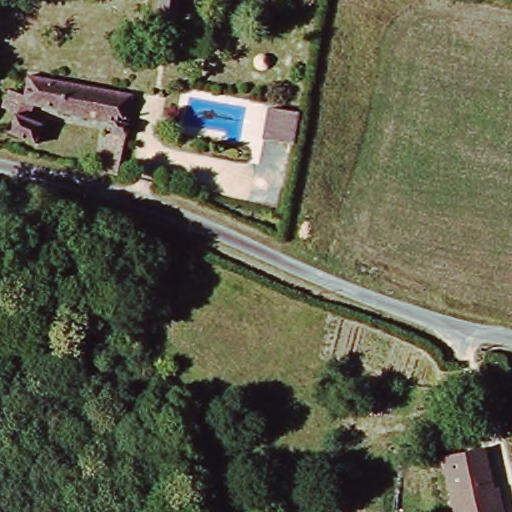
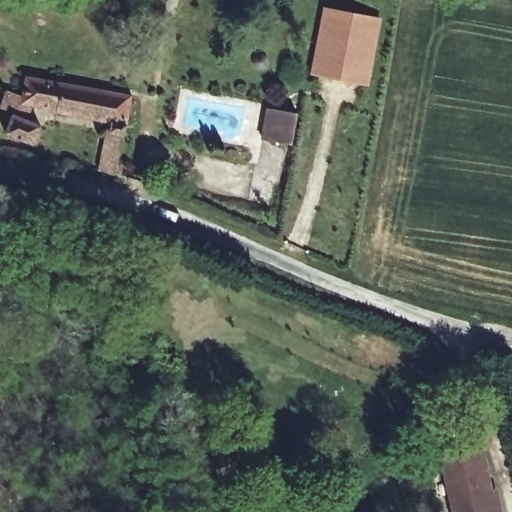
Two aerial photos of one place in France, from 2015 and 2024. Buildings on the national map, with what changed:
unchanged [(191,0),(193,2),(190,30),(170,27),(172,6),(172,1),(173,0),(191,0)]
new [(382,17),(369,86),(310,75),(323,7),(382,17)]
unchanged [(37,141),(10,134),(16,112),(8,111),(13,90),(27,92),(30,77),(138,101),(120,181),(102,176),(110,126),(32,106),(29,121),(42,124),(37,141)]
unchanged [(261,145),(266,114),(297,118),(292,149),(261,145)]
unchanged [(450,463),(490,453),(505,512),(462,512),(450,463)]

